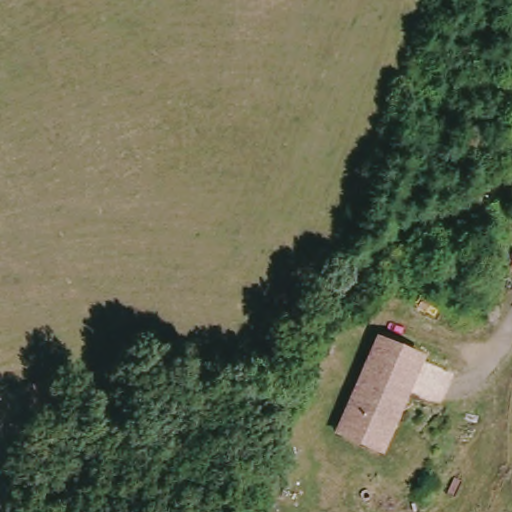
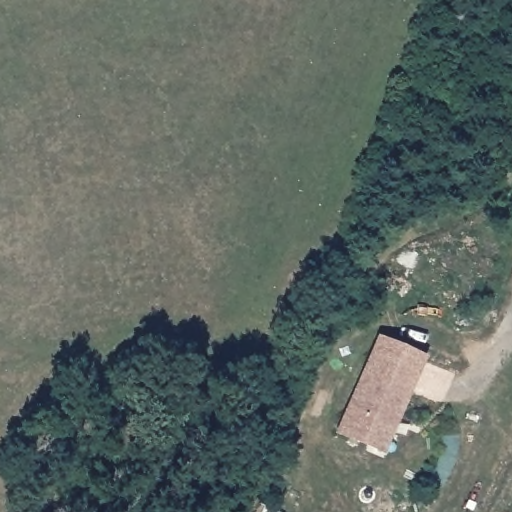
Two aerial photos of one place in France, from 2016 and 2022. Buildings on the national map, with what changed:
unchanged [(364,444),(335,430),(381,337),(424,358),(395,415),(378,451),(364,444)]

